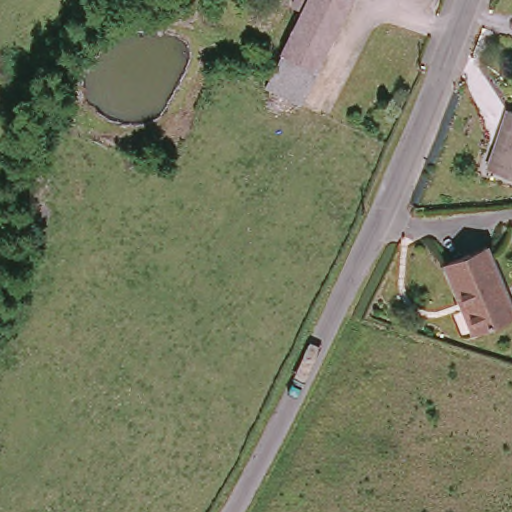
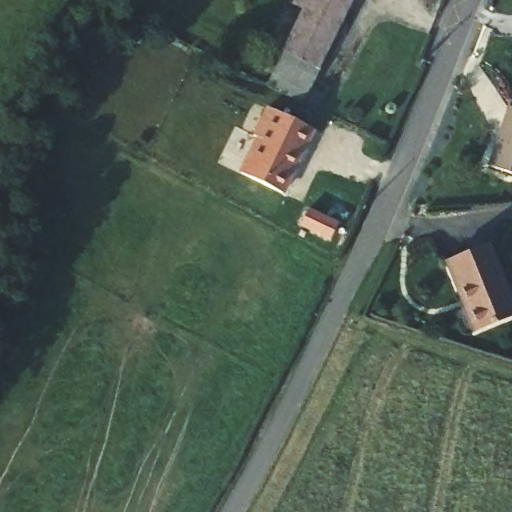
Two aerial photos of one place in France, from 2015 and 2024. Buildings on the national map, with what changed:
unchanged [(293,0),(350,0),(321,64),(325,66),(321,75),(316,73),(303,103),(265,85),(302,13),(290,5),(293,0)]
unchanged [(404,63),(370,132),(337,112),(370,47),(404,63)]
new [(316,131),(284,194),(237,171),(255,138),(250,134),(265,106),(316,131)]
unchanged [(512,115),(512,169),(495,165),(508,114),(512,115)]
unchanged [(488,244),(512,319),(468,332),(445,258),(488,244)]

